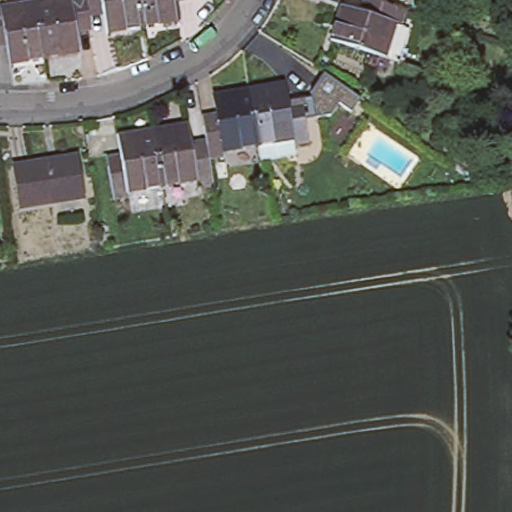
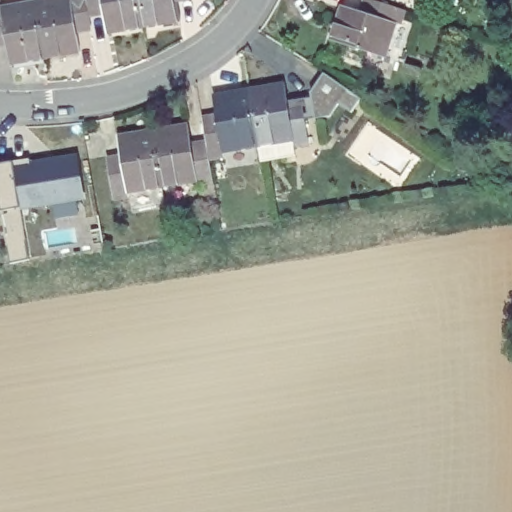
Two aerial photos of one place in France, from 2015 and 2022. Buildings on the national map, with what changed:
unchanged [(13,65),(9,47),(0,48),(0,0),(2,0),(2,3),(3,8),(38,2),(48,59),(13,65)]
unchanged [(146,28),(111,35),(106,5),(91,7),(94,22),(78,24),(83,53),(48,59),(38,2),(54,0),(141,0),(146,28)]
unchanged [(181,22),(146,28),(141,0),(177,0),(181,22)]
unchanged [(336,7),(363,16),(367,1),(364,0),(376,0),(374,4),(399,12),(395,27),(389,25),(378,59),(324,41),(336,7)]
unchanged [(193,187),(192,182),(157,187),(147,131),(182,125),(187,153),(202,151),(198,127),(213,125),(208,97),(243,91),(279,85),(284,112),(298,110),(304,144),(291,146),(293,158),(256,164),(253,147),(218,152),(219,159),(203,161),(208,185),(193,187)]
unchanged [(108,201),(101,167),(118,165),(113,137),(147,131),(157,187),(122,192),(123,199),(108,201)]
unchanged [(78,199),(15,210),(8,167),(72,157),(78,199)]

